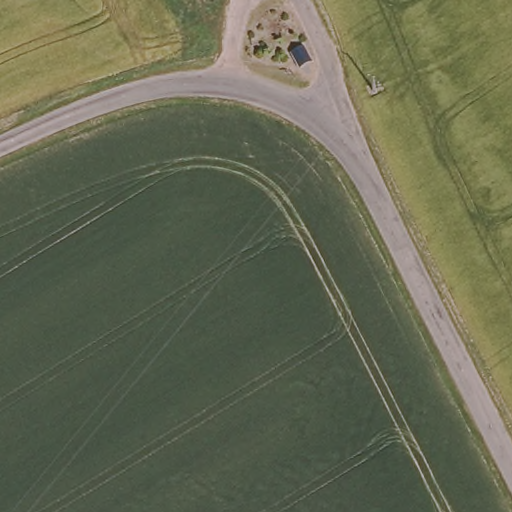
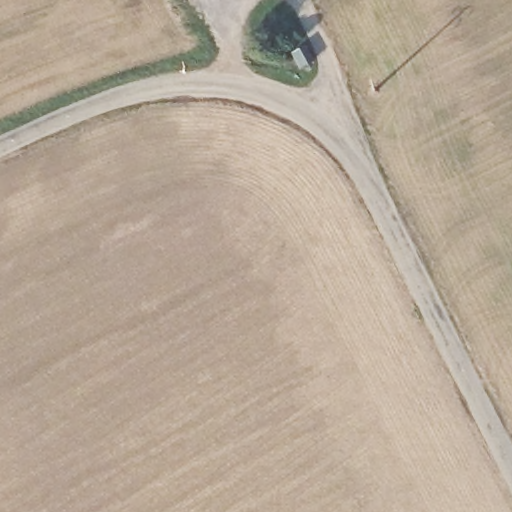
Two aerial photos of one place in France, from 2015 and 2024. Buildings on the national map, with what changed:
unchanged [(301,66),(292,51),(304,45),(311,60),(301,66)]

